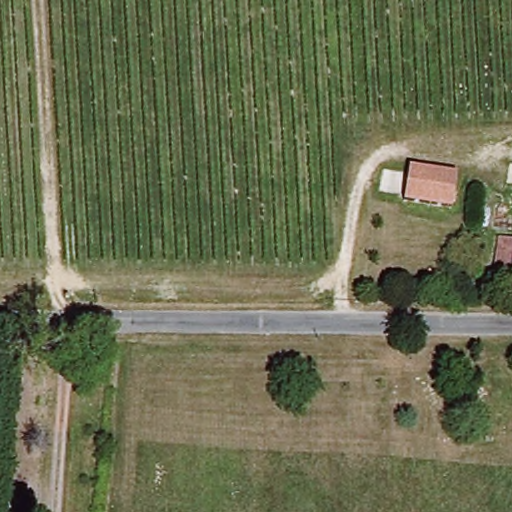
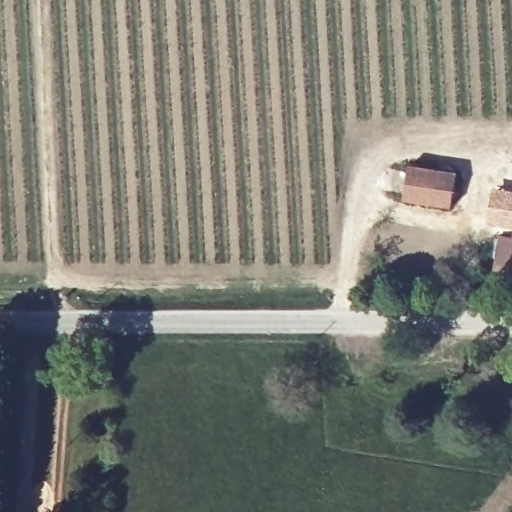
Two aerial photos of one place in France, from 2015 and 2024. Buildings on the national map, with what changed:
unchanged [(406,198),(408,166),(453,171),(451,202),(406,198)]
unchanged [(504,234),(512,235),(512,272),(488,268),(492,232),(504,234)]

